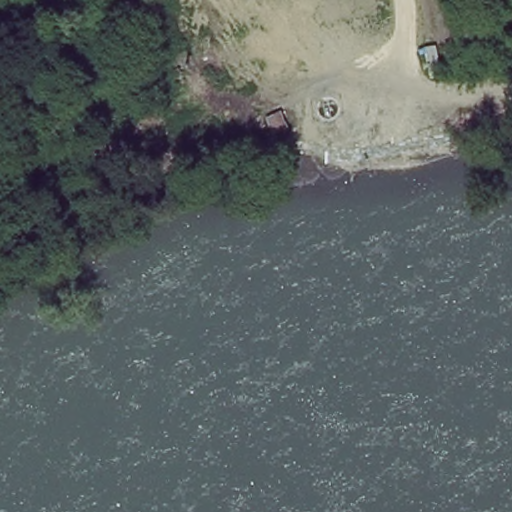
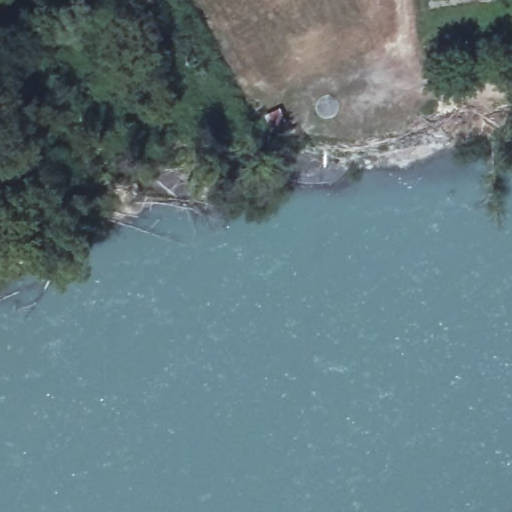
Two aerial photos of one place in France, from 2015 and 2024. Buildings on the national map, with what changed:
unchanged [(279,149),(260,144),(266,124),(288,130),(279,149)]

